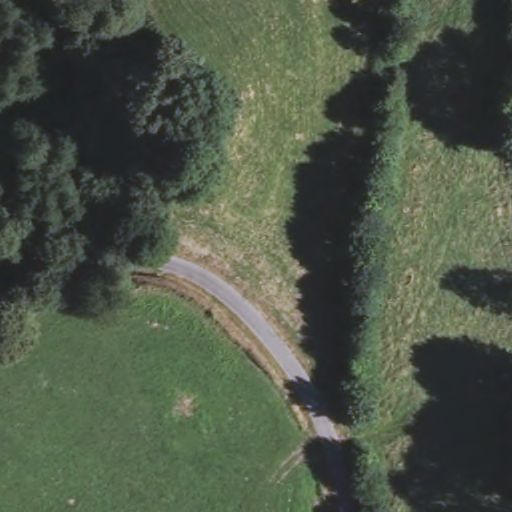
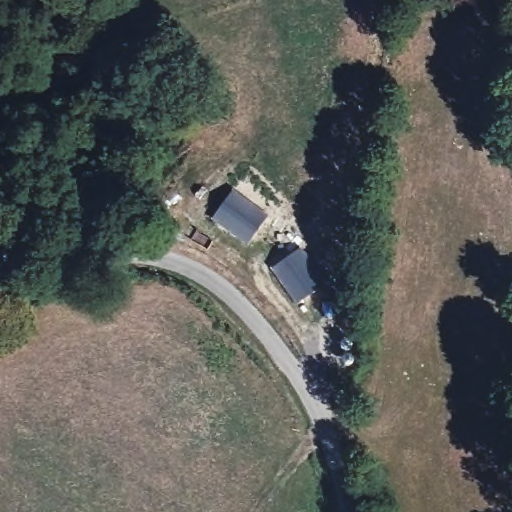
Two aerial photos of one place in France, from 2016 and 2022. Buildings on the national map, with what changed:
new [(270,217),(249,244),(213,219),(233,190),(270,217)]
new [(325,284),(296,304),(271,269),(301,250),(325,284)]

